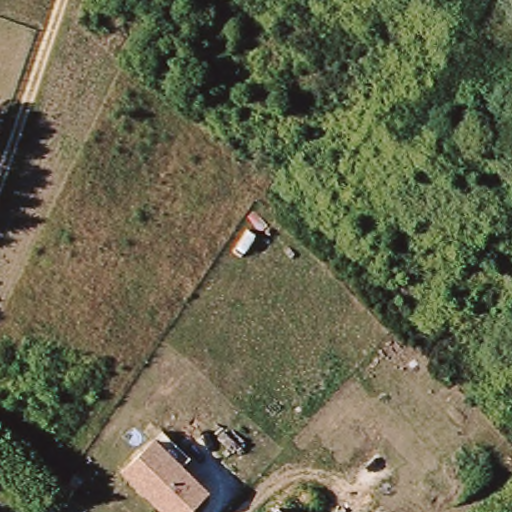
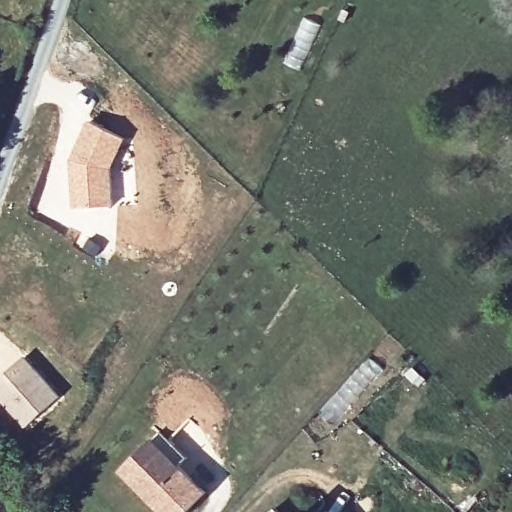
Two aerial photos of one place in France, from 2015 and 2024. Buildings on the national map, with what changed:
new [(88,119),(127,137),(114,169),(114,205),(72,207),(69,161),(88,119)]
new [(62,394),(29,424),(0,393),(0,379),(26,355),(62,394)]
unchanged [(120,472),(152,437),(209,494),(189,512),(162,512),(120,472)]
unchanged [(277,507),(283,512),(272,512),(277,507)]
unchanged [(306,510),(308,512),(303,512),(306,510)]

